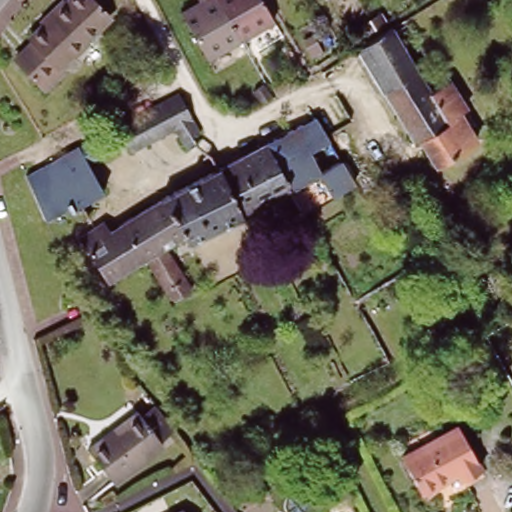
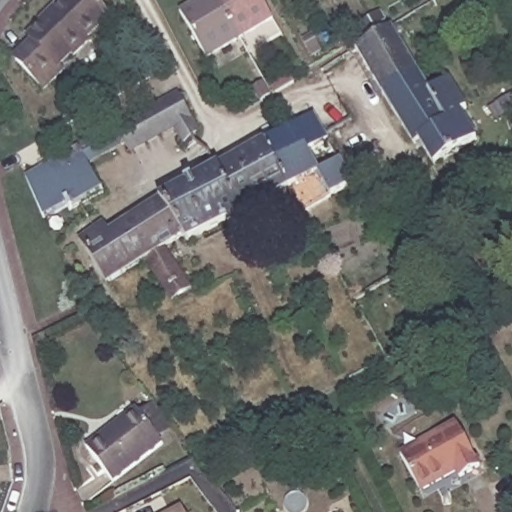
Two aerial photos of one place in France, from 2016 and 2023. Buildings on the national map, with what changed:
unchanged [(88,47),(75,60),(71,57),(58,70),(63,75),(44,94),(15,63),(32,46),(30,43),(44,29),(41,26),(63,5),(65,8),(74,0),(90,0),(110,21),(85,44),(88,47)]
unchanged [(196,0),(214,0),(240,45),(207,64),(180,17),(199,6),(196,0)]
unchanged [(240,45),(214,0),(258,0),(273,26),(240,45)]
unchanged [(380,18),(385,27),(375,34),(364,40),(358,30),(370,24),(380,18)]
unchanged [(391,32),(430,96),(448,85),(465,112),(459,116),(476,144),(434,170),(420,146),(415,149),(382,98),(356,54),(391,32)]
unchanged [(174,89),(194,127),(188,131),(192,137),(183,145),(169,124),(153,100),(174,89)]
unchanged [(113,121),(153,100),(169,124),(125,146),(120,137),(82,158),(98,187),(68,203),(68,204),(65,205),(63,201),(40,214),(28,190),(20,171),(73,141),(113,121)]
unchanged [(100,222),(108,235),(120,228),(117,225),(160,199),(217,168),(265,142),(314,116),(323,133),(328,141),(308,153),(319,172),(340,160),(353,183),(354,184),(304,213),(290,190),(242,216),(187,241),(183,235),(166,246),(191,288),(173,300),(145,258),(106,282),(77,238),(100,222)]
unchanged [(136,410),(138,412),(140,415),(152,405),(171,429),(159,439),(163,444),(113,482),(87,448),(115,426),(136,410)]
unchanged [(457,425),(481,469),(461,480),(457,473),(421,493),(401,456),(457,425)]
unchanged [(292,463),(277,471),(270,457),(285,449),(292,463)]
unchanged [(178,508),(180,512),(171,512),(178,508)]

